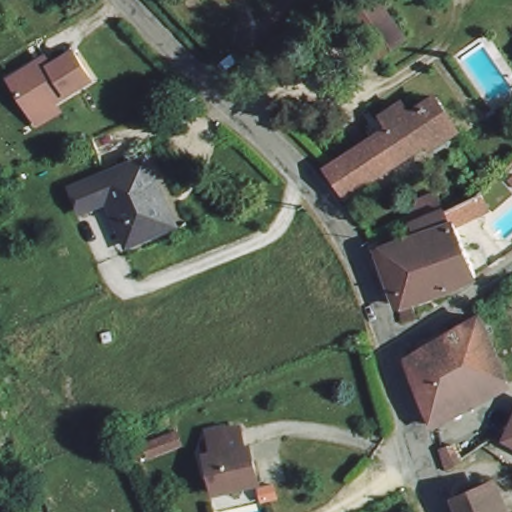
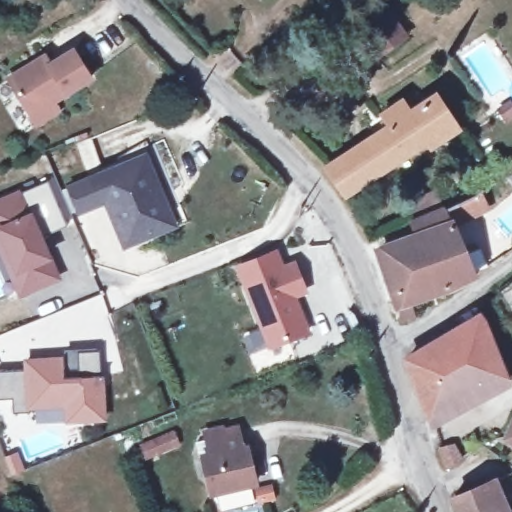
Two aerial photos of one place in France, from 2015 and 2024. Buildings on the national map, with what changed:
unchanged [(378,52),(354,12),(374,0),(384,0),(405,34),(378,52)]
unchanged [(37,122),(32,113),(9,77),(45,55),(50,63),(74,48),(91,76),(53,100),(58,109),(37,122)]
unchanged [(439,94),(450,111),(457,123),(348,191),(320,166),(392,122),(385,110),(407,95),(415,109),(439,94)]
new [(147,152),(178,224),(167,228),(155,203),(162,200),(144,160),(95,179),(105,203),(77,216),(64,184),(147,152)]
unchanged [(162,200),(155,203),(167,228),(123,246),(95,179),(144,160),(162,200)]
new [(20,193),(46,181),(65,227),(41,236),(62,279),(18,297),(0,255),(0,197),(17,189),(20,193)]
unchanged [(468,189),(487,234),(452,247),(435,207),(468,189)]
unchanged [(452,247),(467,283),(392,311),(373,260),(394,251),(387,235),(435,207),(452,247)]
new [(275,250),(282,267),(294,262),(305,290),(293,294),(307,331),(270,345),(238,265),(275,250)]
unchanged [(512,378),(512,383),(430,428),(407,361),(480,317),(512,378)]
new [(67,418),(65,402),(28,404),(29,410),(12,411),(10,396),(0,397),(0,369),(25,367),(25,359),(63,356),(64,374),(77,374),(76,349),(98,348),(101,394),(102,416),(97,416),(67,418)]
unchanged [(501,432),(512,414),(512,439),(501,432)]
unchanged [(245,432),(255,463),(259,462),(265,482),(220,495),(208,458),(217,456),(210,434),(226,429),(228,436),(245,432)]
unchanged [(152,441),(177,431),(185,448),(160,458),(152,441)]
unchanged [(504,512),(465,512),(460,498),(455,481),(482,470),(504,512)]
demolished [(380,505),(369,485),(392,472),(403,494),(398,496),(391,500),(380,505)]

